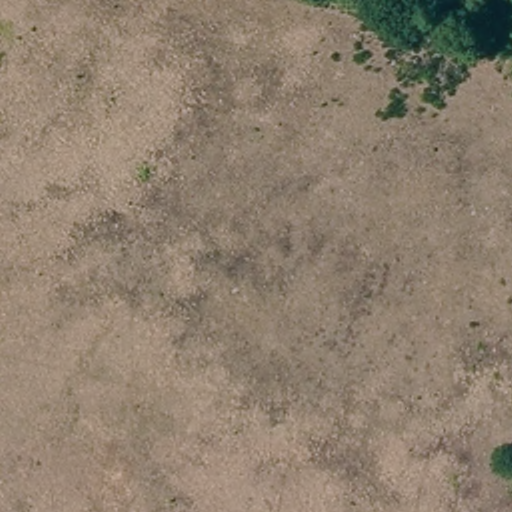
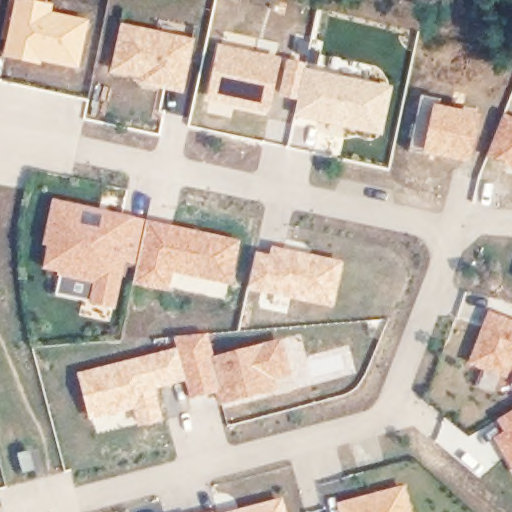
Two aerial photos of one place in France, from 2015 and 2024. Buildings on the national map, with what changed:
new [(17,0),(29,0),(54,5),(53,13),(90,20),(79,69),(42,61),(41,65),(5,56),(17,0)]
new [(165,85),(165,83),(150,80),(150,76),(115,70),(123,26),(192,40),(183,89),(165,85)]
new [(282,59),(270,114),(208,100),(220,45),(282,59)]
new [(297,116),(305,69),(393,88),(382,135),(297,116)]
new [(420,99),(480,114),(469,164),(409,150),(420,99)]
new [(488,158),(506,115),(512,116),(512,168),(506,166),(506,161),(488,158)]
new [(80,314),(82,299),(56,294),(61,269),(47,266),(51,243),(46,242),(55,202),(147,222),(139,267),(128,265),(126,277),(119,275),(112,320),(80,314)]
new [(241,241),(230,286),(173,274),(169,292),(134,284),(139,267),(147,222),(241,241)]
new [(255,250),(268,254),(271,245),(344,261),(333,309),(246,292),(255,250)]
new [(490,311),(512,320),(512,364),(507,378),(470,363),(490,311)]
new [(173,339),(207,334),(213,358),(209,359),(218,392),(190,399),(185,381),(153,389),(163,422),(140,429),(134,409),(90,420),(78,374),(178,349),(173,339)]
new [(221,403),(209,359),(283,339),(291,373),(273,378),(276,391),(221,403)]
new [(508,433),(500,418),(512,411),(512,472),(493,441),(508,433)]
new [(338,504),(405,486),(413,512),(341,512),(338,504)]
new [(283,499),(287,512),(230,512),(283,499)]

